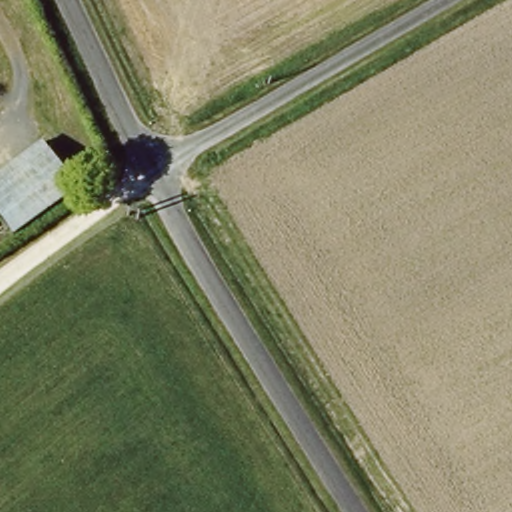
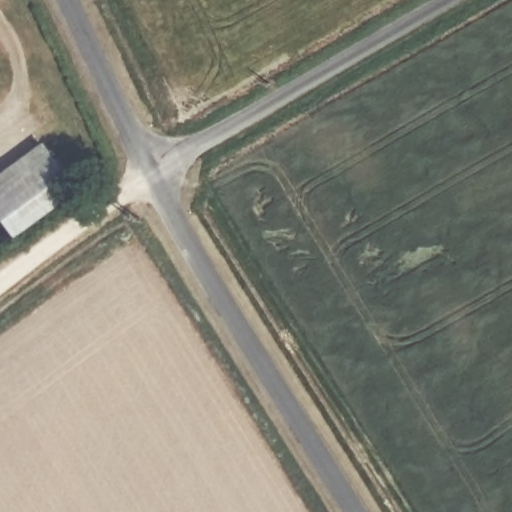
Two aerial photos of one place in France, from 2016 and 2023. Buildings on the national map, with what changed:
unchanged [(53,162),(0,204),(0,181),(42,147),(53,162)]
unchanged [(77,194),(18,238),(0,215),(0,204),(53,162),(77,194)]

